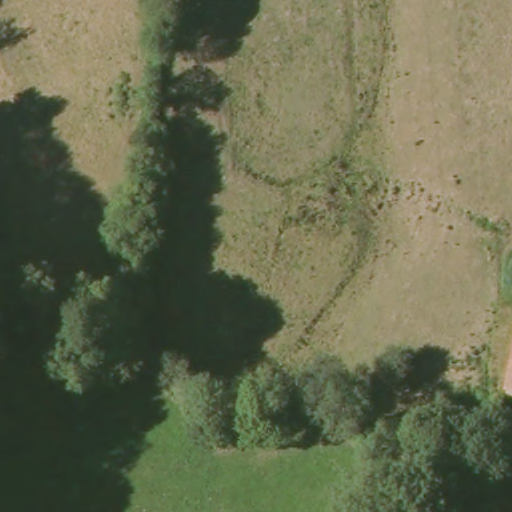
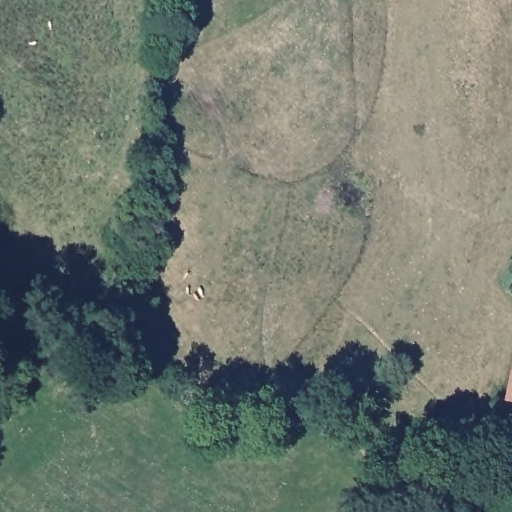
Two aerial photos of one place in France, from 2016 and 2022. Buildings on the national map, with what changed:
unchanged [(510,404),(512,393),(512,405),(510,404)]

